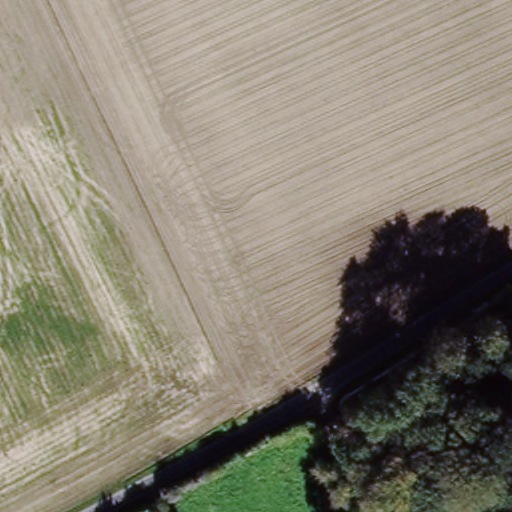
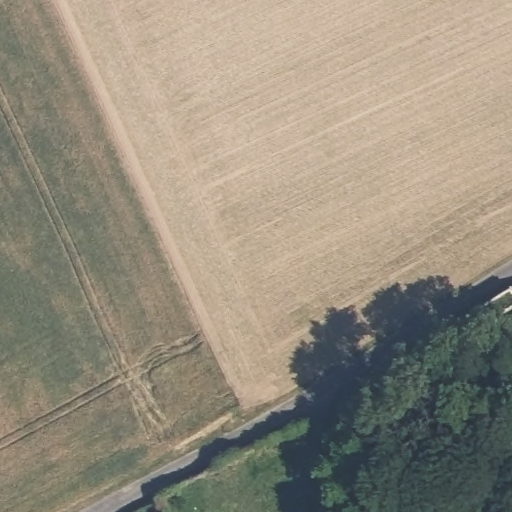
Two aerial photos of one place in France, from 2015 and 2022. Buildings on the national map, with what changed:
unchanged [(472,308),(511,282),(512,283),(512,304),(482,323),(476,312),(472,308)]

